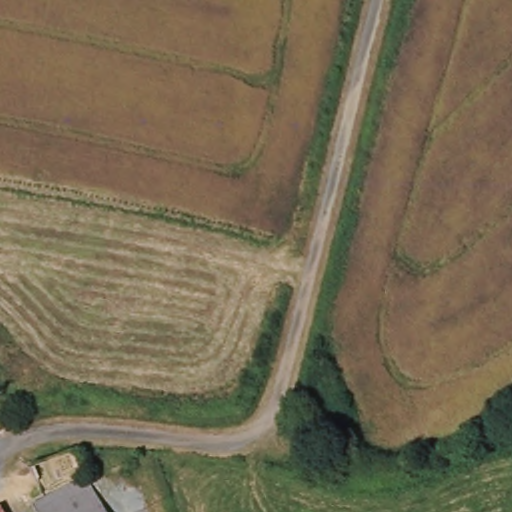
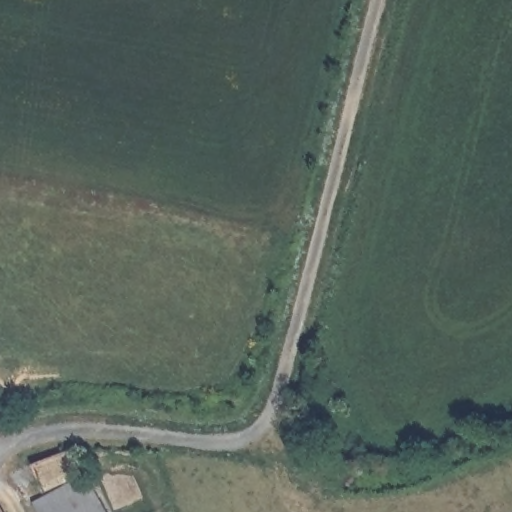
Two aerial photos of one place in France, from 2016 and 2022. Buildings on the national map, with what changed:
unchanged [(70,450),(76,465),(35,480),(28,465),(70,450)]
unchanged [(87,478),(107,512),(41,512),(37,506),(87,478)]

